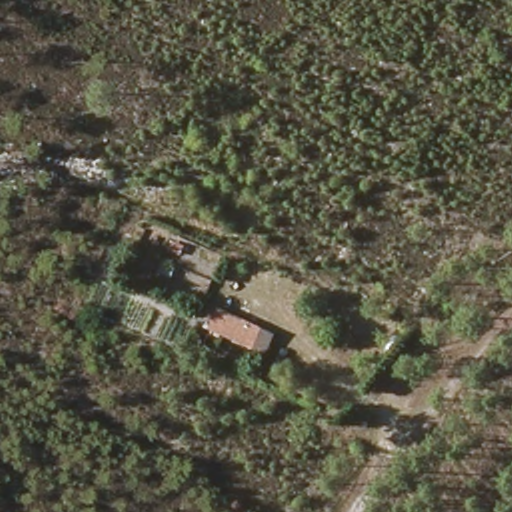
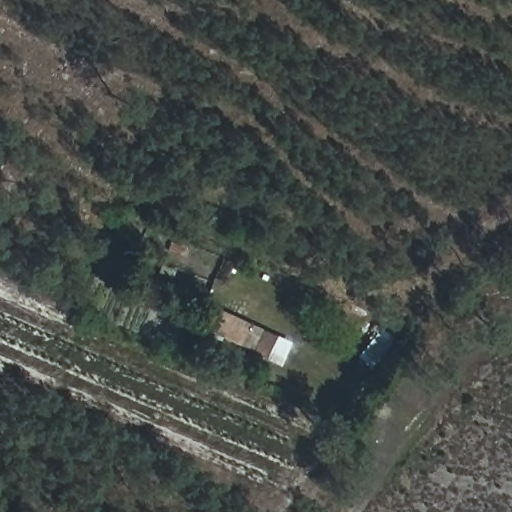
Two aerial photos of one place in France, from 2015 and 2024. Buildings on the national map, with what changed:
unchanged [(267,354),(208,328),(218,307),(276,332),(267,354)]

